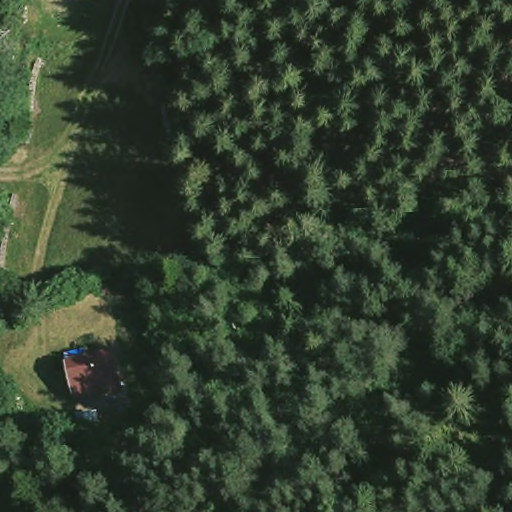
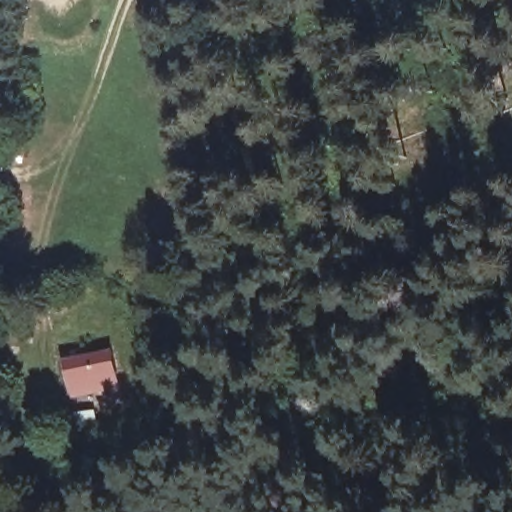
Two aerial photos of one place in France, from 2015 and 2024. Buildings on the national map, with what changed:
unchanged [(123,385),(70,395),(64,357),(115,345),(123,385)]

